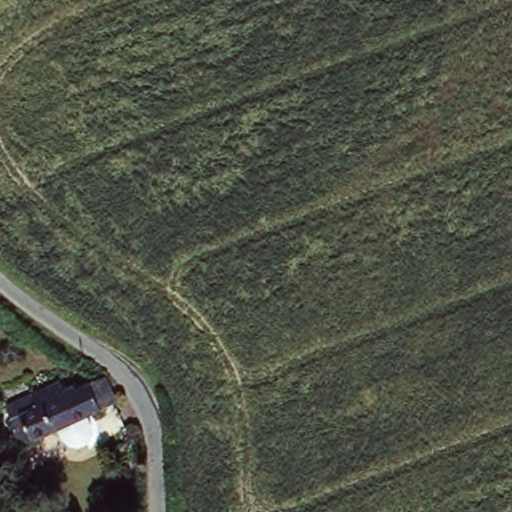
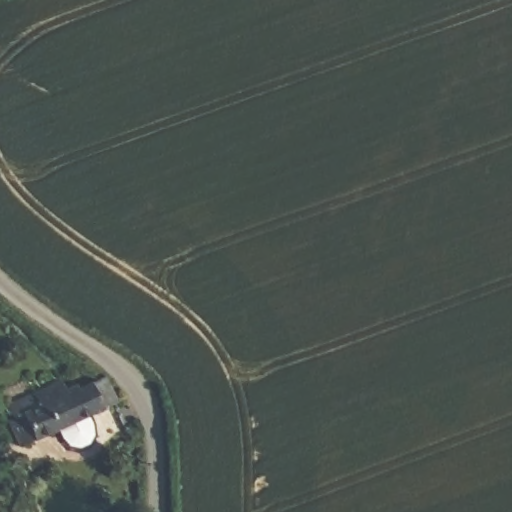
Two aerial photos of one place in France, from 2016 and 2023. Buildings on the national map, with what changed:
unchanged [(109,392),(119,401),(35,440),(18,448),(10,428),(20,413),(18,407),(59,387),(63,392),(75,387),(77,391),(96,383),(109,392)]

